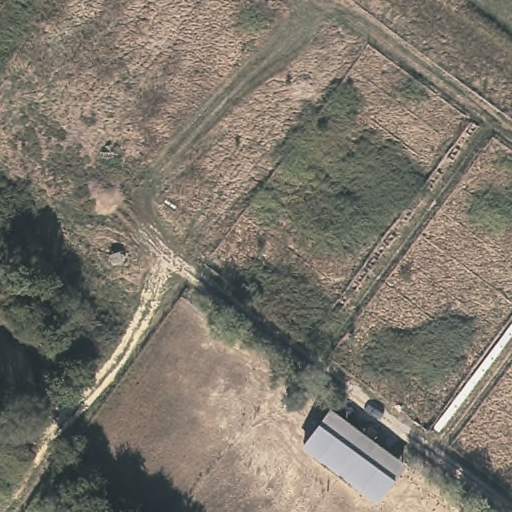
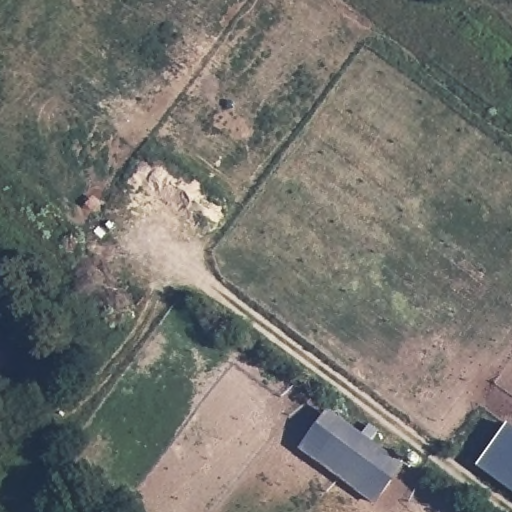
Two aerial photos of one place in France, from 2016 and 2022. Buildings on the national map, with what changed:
unchanged [(406,465),(376,506),(300,447),(328,409),(406,465)]
new [(512,426),(512,491),(478,466),(510,424),(512,426)]

